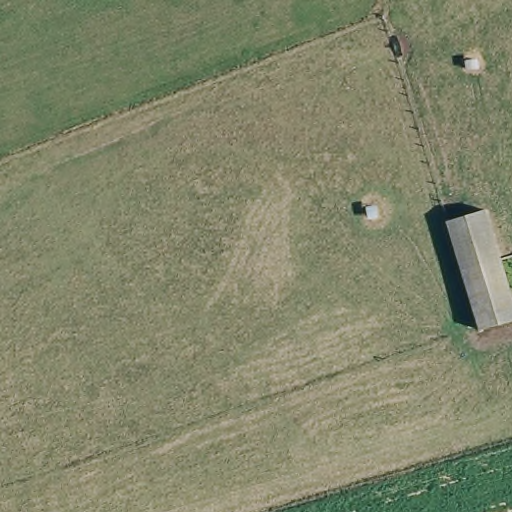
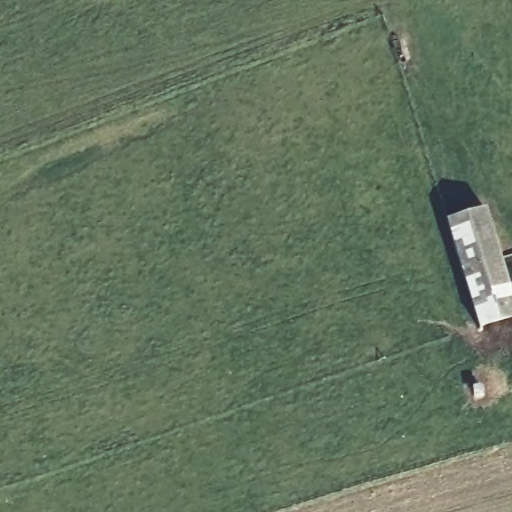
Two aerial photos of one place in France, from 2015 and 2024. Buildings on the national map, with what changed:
unchanged [(444,219),(484,210),(497,255),(512,250),(512,283),(510,284),(512,293),(512,326),(477,331),(444,219)]

